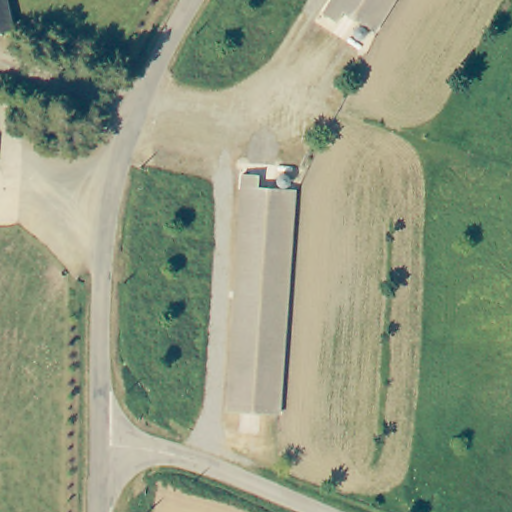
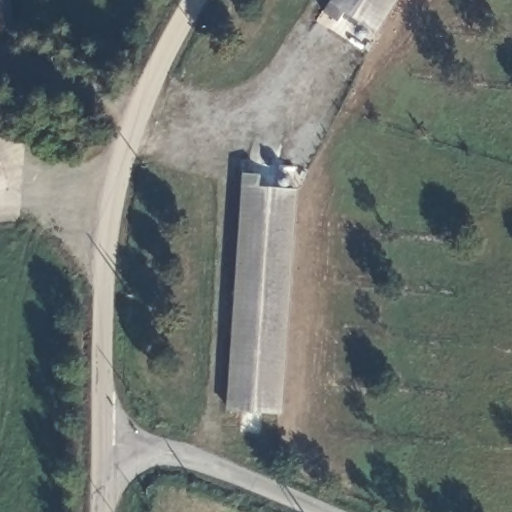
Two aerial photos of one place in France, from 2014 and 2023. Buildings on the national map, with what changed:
unchanged [(0,32),(0,0),(10,0),(16,29),(0,32)]
unchanged [(378,27),(350,9),(343,19),(328,9),(339,0),(395,0),(378,27)]
unchanged [(288,416),(241,413),(256,189),(253,187),(253,174),(270,175),(270,188),(302,191),(288,416)]

